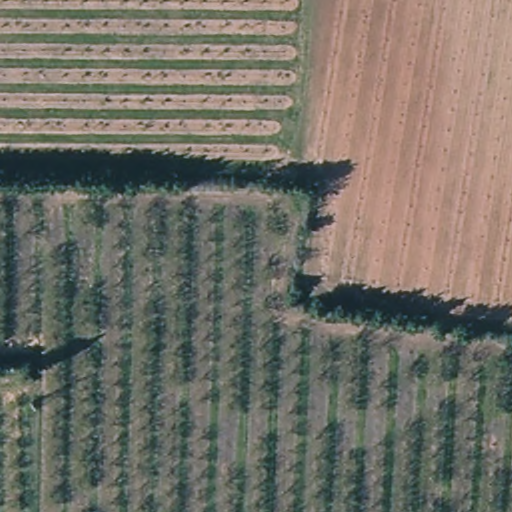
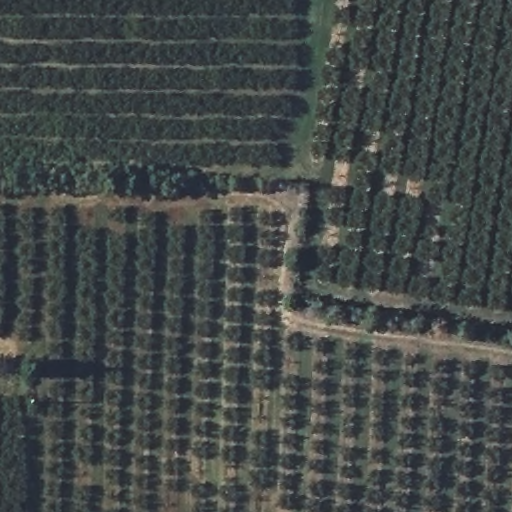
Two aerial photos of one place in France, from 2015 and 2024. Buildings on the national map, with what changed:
[]

